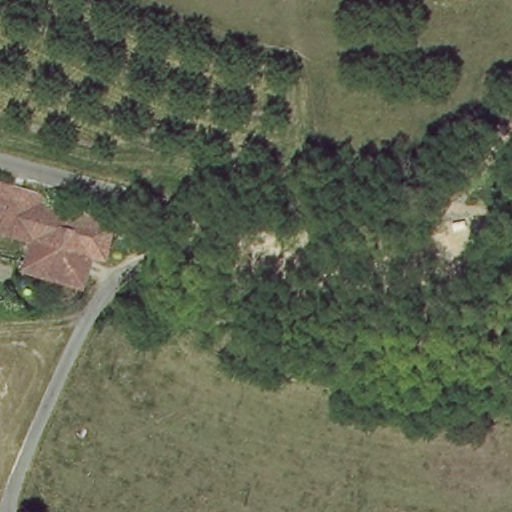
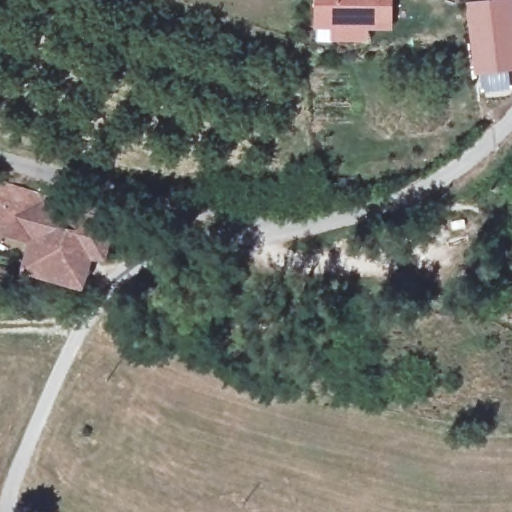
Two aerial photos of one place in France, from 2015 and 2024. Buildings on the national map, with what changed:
new [(367,28),(368,40),(331,39),(331,28),(315,28),(315,0),(392,0),(392,29),(367,28)]
new [(512,0),(512,69),(509,69),(512,89),(482,93),(479,73),(474,74),(465,1),(473,0),(512,0)]
unchanged [(50,273),(26,266),(32,244),(0,234),(0,185),(1,181),(11,184),(17,186),(48,198),(45,208),(85,223),(119,240),(114,248),(104,266),(84,260),(78,281),(50,273)]

